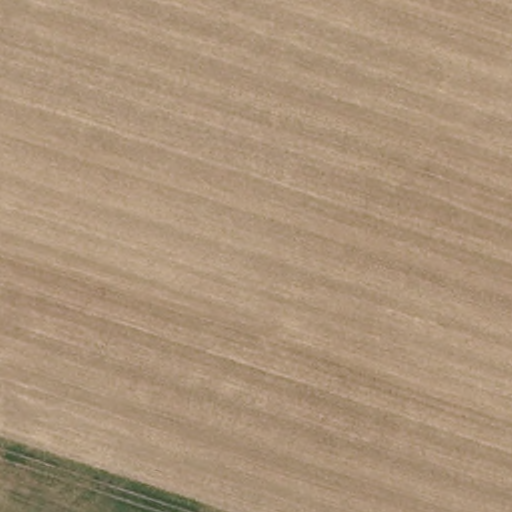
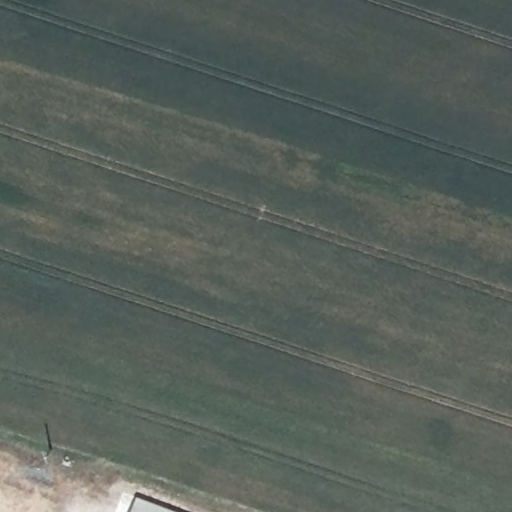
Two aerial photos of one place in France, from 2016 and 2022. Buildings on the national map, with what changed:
new [(137,497),(178,512),(132,512),(137,497)]

